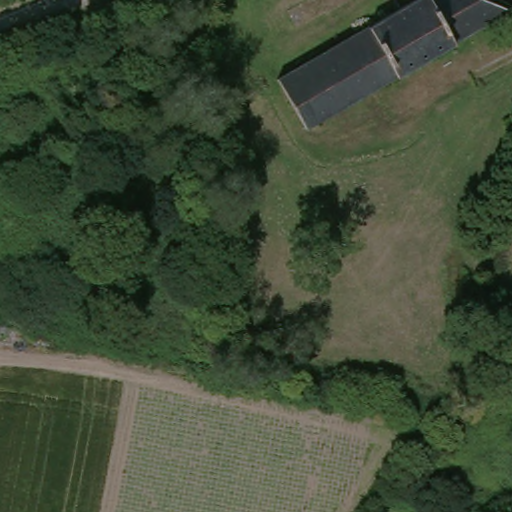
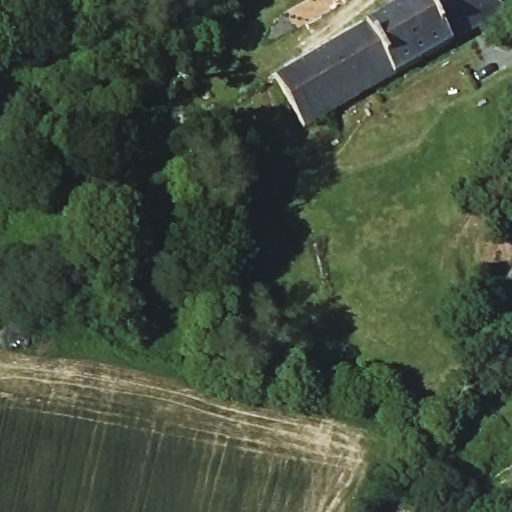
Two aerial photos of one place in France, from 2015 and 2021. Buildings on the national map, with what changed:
unchanged [(485,0),(501,7),(503,8),(302,130),(272,80),(400,0),(485,0)]

